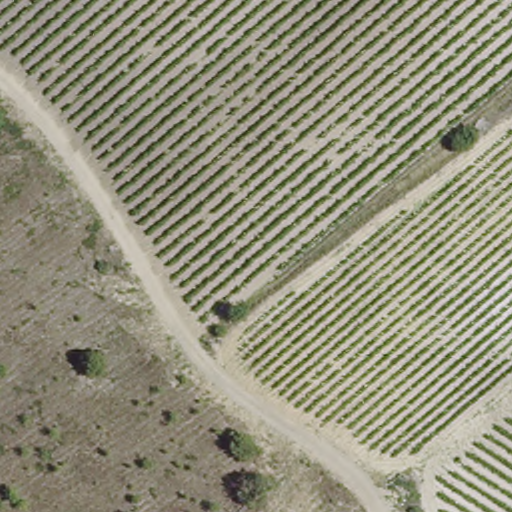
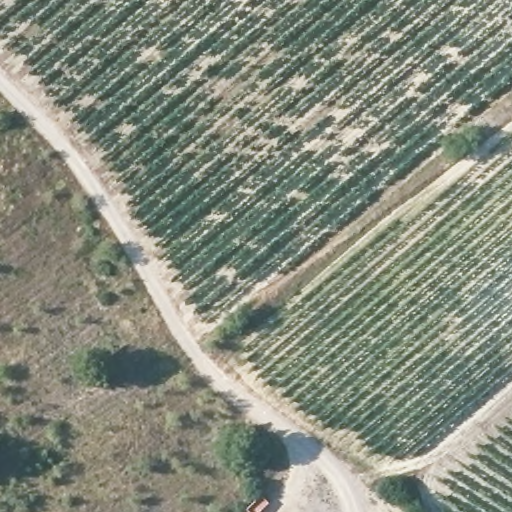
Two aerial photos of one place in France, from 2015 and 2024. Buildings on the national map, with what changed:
unchanged [(391,502),(380,492),(395,477),(407,487),(391,502)]

